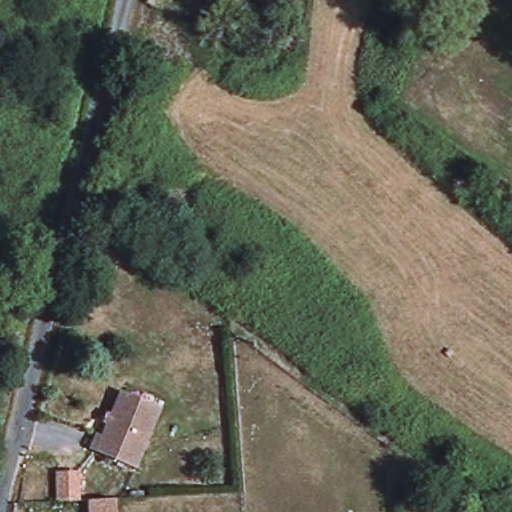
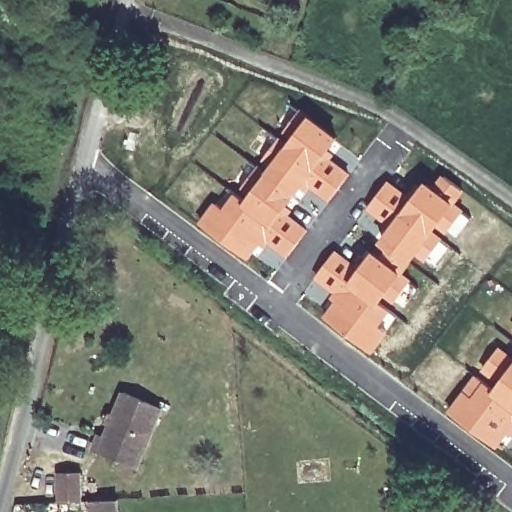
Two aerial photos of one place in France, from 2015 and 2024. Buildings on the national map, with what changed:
new [(222,207),(233,192),(242,199),(252,184),(247,179),(262,163),(260,161),(300,107),(310,113),(340,138),(329,153),(351,174),(327,203),(305,187),(287,211),(308,229),(283,260),(262,243),(245,262),(197,223),(213,201),(222,207)]
new [(387,228),(385,226),(411,196),(427,179),(432,184),(442,173),(465,192),(457,203),(465,211),(425,262),(417,255),(404,273),(372,248),(387,228)]
new [(388,178),(411,196),(385,226),(363,211),(388,178)]
new [(335,248),(359,266),(372,248),(404,273),(412,280),(394,303),(385,296),(380,301),(392,312),(382,326),(387,332),(368,356),(320,317),(332,302),(327,297),(319,307),(302,292),(335,248)]
new [(512,327),(512,332),(510,330),(512,327)]
new [(512,432),(495,451),(447,410),(477,373),(500,345),(512,353),(512,432)]
unchanged [(137,468),(94,450),(100,435),(105,437),(125,392),(162,408),(137,468)]
unchanged [(82,471),(84,506),(58,506),(57,471),(82,471)]
unchanged [(124,512),(91,512),(91,499),(122,497),(124,512)]

